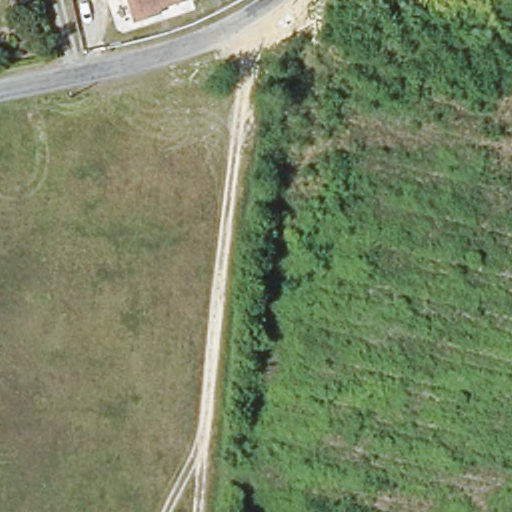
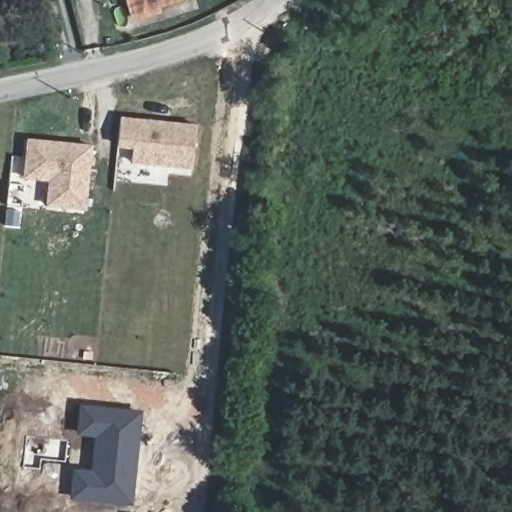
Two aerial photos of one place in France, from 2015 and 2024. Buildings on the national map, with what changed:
unchanged [(133,18),(131,12),(127,0),(169,0),(155,5),(156,10),(133,18)]
new [(120,119),(161,122),(165,128),(179,130),(180,125),(196,126),(192,168),(131,161),(133,146),(118,145),(120,119)]
new [(28,140),(55,143),(60,149),(73,150),(74,145),(91,146),(85,210),(47,206),(50,180),(25,178),(28,140)]
new [(69,501),(72,467),(90,468),(94,437),(75,435),(80,403),(143,410),(133,507),(69,501)]

